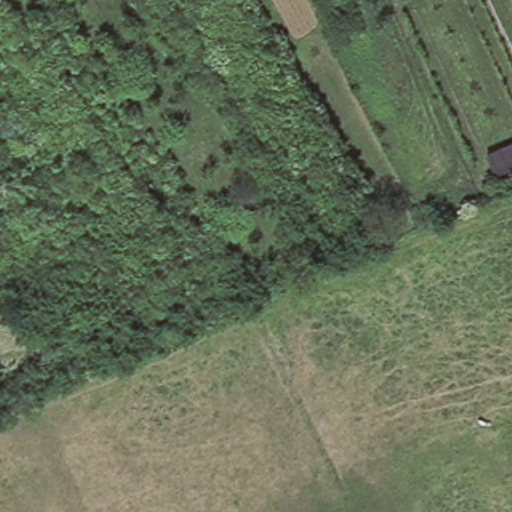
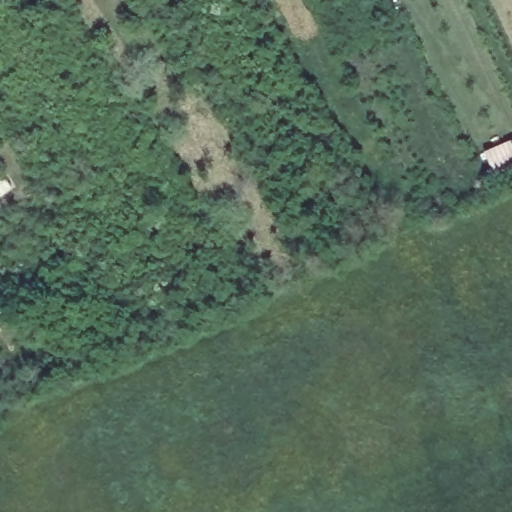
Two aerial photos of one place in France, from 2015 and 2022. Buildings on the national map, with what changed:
unchanged [(478,152),(512,138),(512,164),(485,176),(478,152)]

